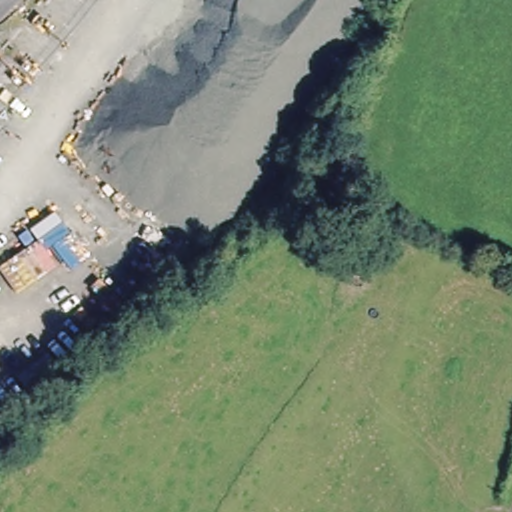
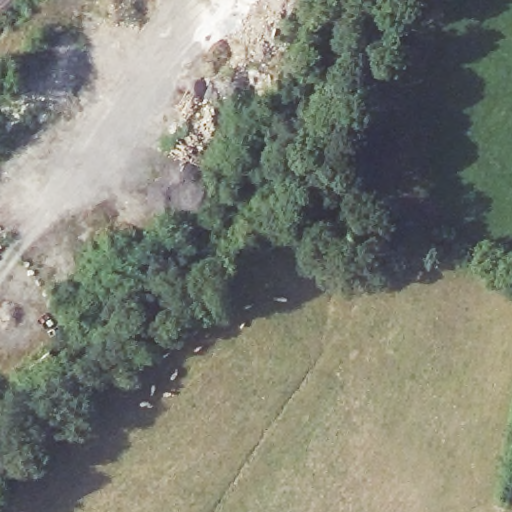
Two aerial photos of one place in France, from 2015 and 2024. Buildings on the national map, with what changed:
unchanged [(345,181),(351,174),(358,177),(352,189),(345,181)]
unchanged [(65,371),(32,396),(15,375),(43,355),(65,371)]

